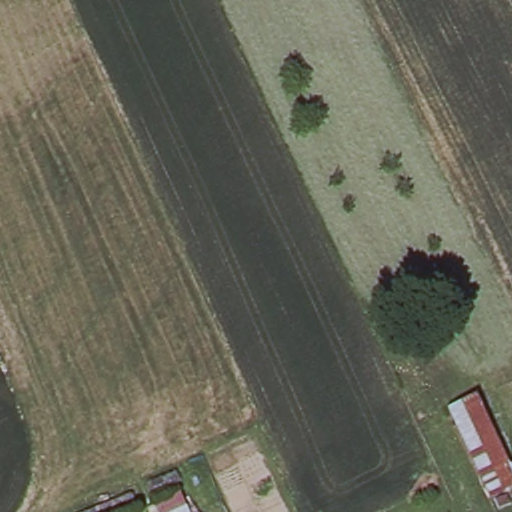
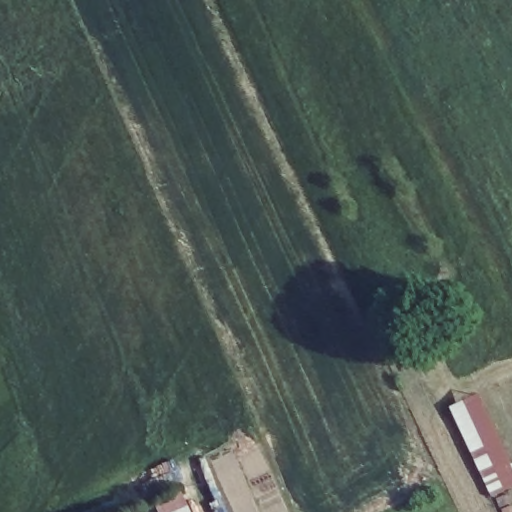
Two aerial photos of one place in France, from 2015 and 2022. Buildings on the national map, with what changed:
unchanged [(489,499),(444,413),(475,394),(512,473),(512,487),(489,499)]

